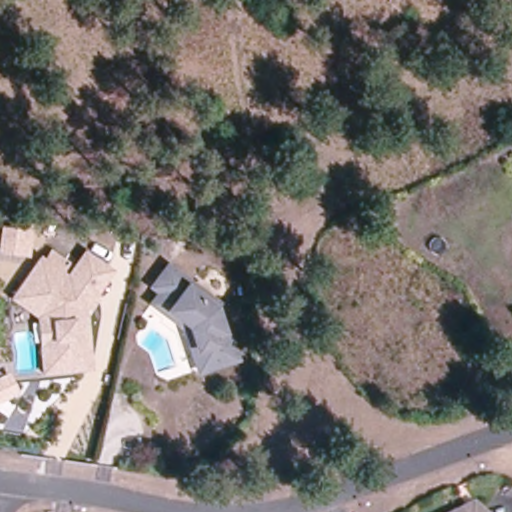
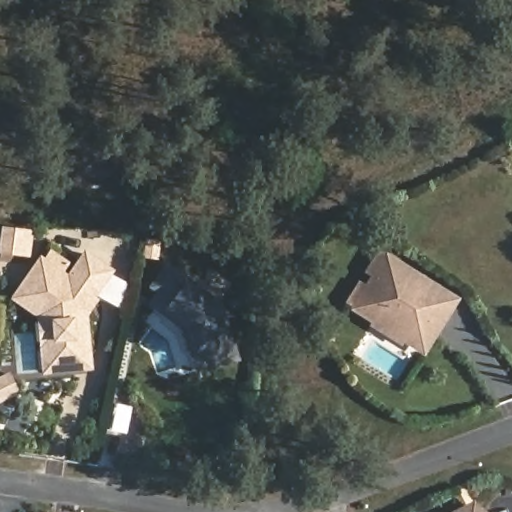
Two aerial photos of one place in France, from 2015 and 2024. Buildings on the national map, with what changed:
new [(31,256),(25,255),(3,253),(6,228),(28,231),(34,231),(31,256)]
new [(423,357),(342,307),(378,248),(457,298),(423,357)]
unchanged [(94,296),(98,299),(85,318),(93,366),(42,373),(34,316),(8,298),(40,254),(45,257),(49,249),(68,261),(63,273),(67,275),(85,249),(113,271),(94,296)]
unchanged [(167,310),(152,300),(160,288),(152,283),(167,263),(189,279),(215,298),(224,324),(234,354),(199,366),(192,345),(184,323),(167,310)]
unchanged [(482,512),(468,512),(477,507),(482,512)]

